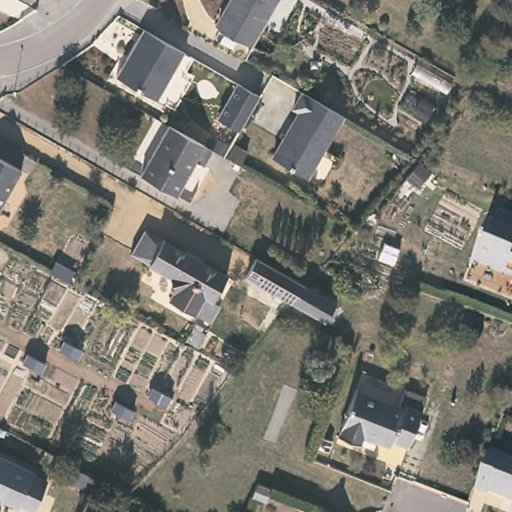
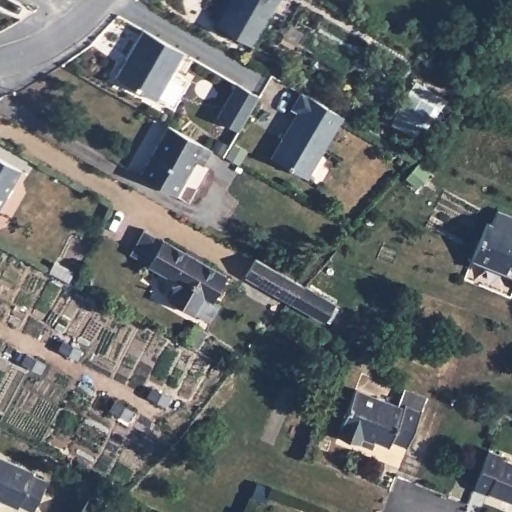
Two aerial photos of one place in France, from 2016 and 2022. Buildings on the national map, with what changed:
unchanged [(1,7),(0,6),(0,0),(5,0),(1,7)]
unchanged [(254,44),(217,24),(232,0),(279,0),(254,44)]
unchanged [(157,100),(116,77),(135,42),(142,28),(149,32),(184,52),(157,100)]
unchanged [(260,95),(240,130),(218,117),(238,82),(260,95)]
unchanged [(300,110),(294,106),(303,90),(327,104),(344,114),(308,176),(273,156),(300,110)]
unchanged [(207,150),(199,165),(191,161),(172,194),(135,173),(164,125),(207,150)]
unchanged [(19,170),(0,206),(0,159),(19,170)]
unchanged [(488,222),(492,224),(499,207),(512,213),(512,275),(504,272),(473,260),(488,222)]
unchanged [(211,324),(195,314),(169,300),(175,289),(170,276),(150,266),(151,263),(135,253),(147,232),(164,242),(165,240),(229,275),(215,301),(221,305),(211,324)]
unchanged [(245,276),(255,258),(303,286),(334,304),(324,321),(290,302),(245,276)]
unchanged [(360,437),(340,429),(344,421),(341,420),(355,382),(404,399),(410,383),(427,390),(409,440),(407,439),(392,433),(391,438),(377,433),(374,442),(360,437)]
unchanged [(507,455),(512,457),(512,495),(494,487),(494,490),(479,484),(494,445),(508,451),(507,455)]
unchanged [(0,505),(0,458),(33,471),(32,473),(47,480),(35,510),(20,504),(19,507),(7,502),(1,500),(1,501),(0,505)]
unchanged [(129,512),(88,512),(95,496),(129,512)]

